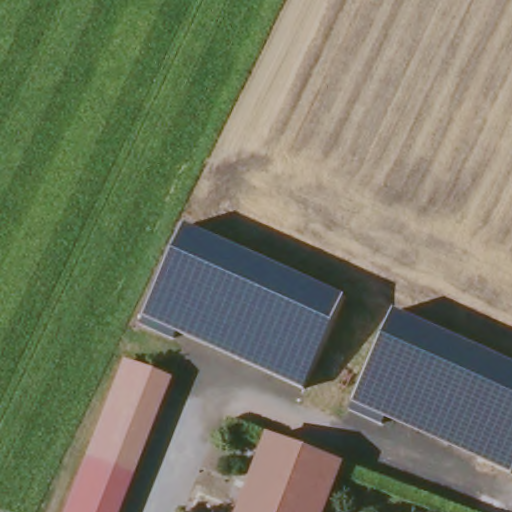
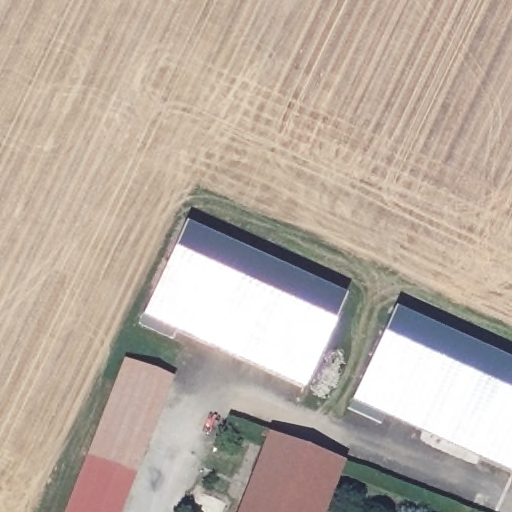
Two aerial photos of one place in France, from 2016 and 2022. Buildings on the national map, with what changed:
unchanged [(183,222),(342,295),(300,386),(140,314),(183,222)]
unchanged [(512,362),(512,471),(510,475),(351,402),(395,310),(512,362)]
unchanged [(122,512),(62,512),(121,358),(175,379),(122,512)]
unchanged [(340,467),(321,512),(238,512),(268,438),(340,467)]

